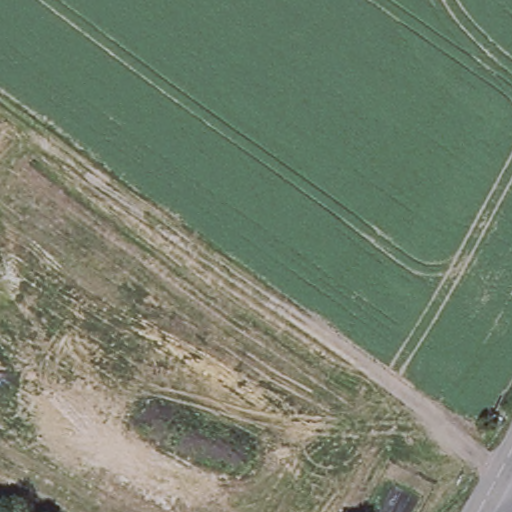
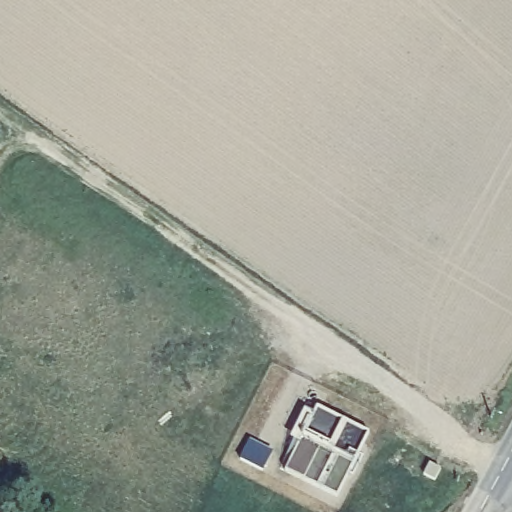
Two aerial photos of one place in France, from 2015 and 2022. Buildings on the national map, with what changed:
new [(337,496),(285,469),(299,444),(290,439),(304,411),(312,415),(316,407),(368,433),(337,496)]

